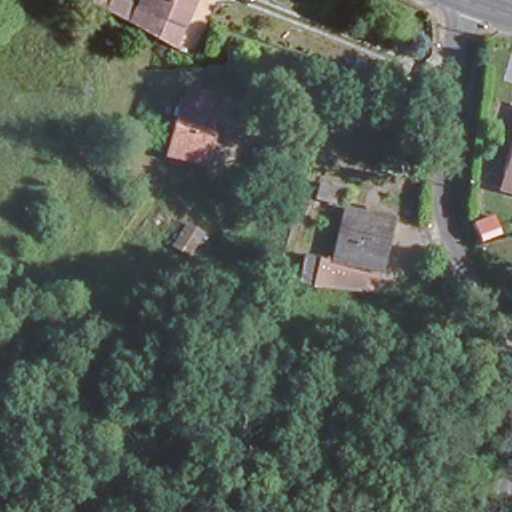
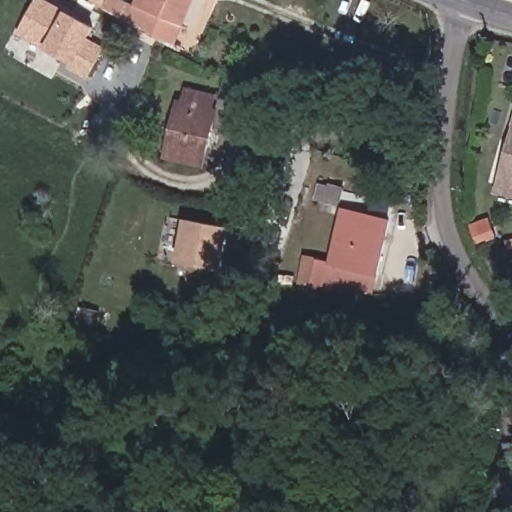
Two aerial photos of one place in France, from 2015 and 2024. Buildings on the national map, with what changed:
new [(106,47),(88,80),(71,71),(74,65),(17,34),(36,0),(47,0),(95,26),(89,38),(106,47)]
unchanged [(123,19),(97,2),(98,0),(214,0),(192,58),(123,19)]
unchanged [(184,105),(188,85),(212,93),(208,116),(216,117),(200,167),(161,155),(176,103),(184,105)]
unchanged [(512,135),(512,190),(498,186),(503,171),(511,141),(512,135)]
unchanged [(349,202),(347,215),(327,211),(329,198),(349,202)]
new [(185,219),(229,228),(221,270),(177,261),(185,219)]
unchanged [(329,262),(336,224),(384,235),(371,293),(311,282),(315,259),(329,262)]

